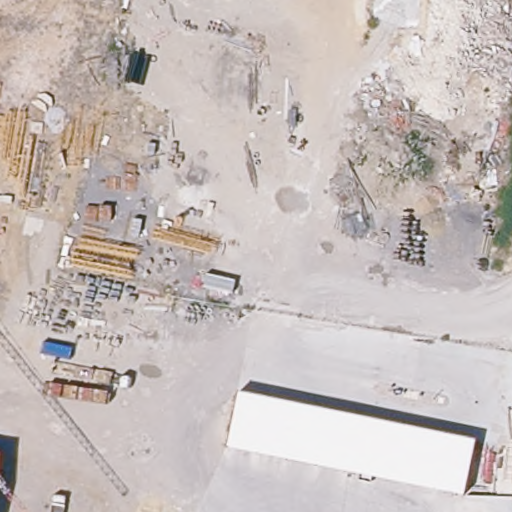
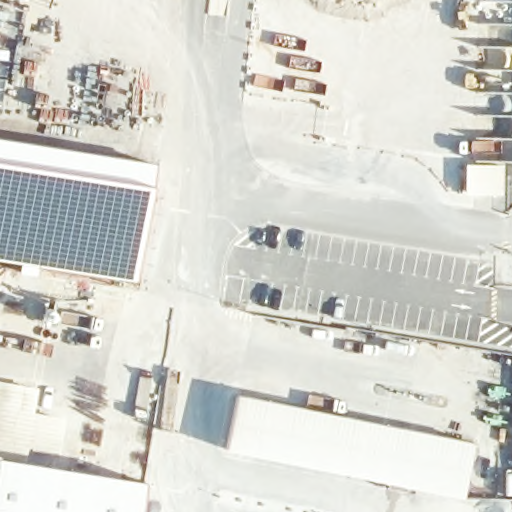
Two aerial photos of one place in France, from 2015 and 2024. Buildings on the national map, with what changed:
new [(138,283),(39,267),(37,271),(0,262),(0,137),(156,162),(138,283)]
new [(476,164),(500,164),(499,194),(475,194),(476,164)]
new [(316,324),(346,329),(344,342),(313,336),(316,324)]
new [(5,438),(0,438),(0,388),(34,393),(26,442),(12,440),(10,447),(24,450),(22,461),(0,457),(0,445),(3,446),(5,438)]
unchanged [(474,442),(464,497),(226,450),(237,395),(474,442)]
new [(37,415),(60,419),(56,448),(32,445),(37,415)]
unchanged [(147,478),(142,512),(0,512),(0,457),(22,461),(147,478)]

